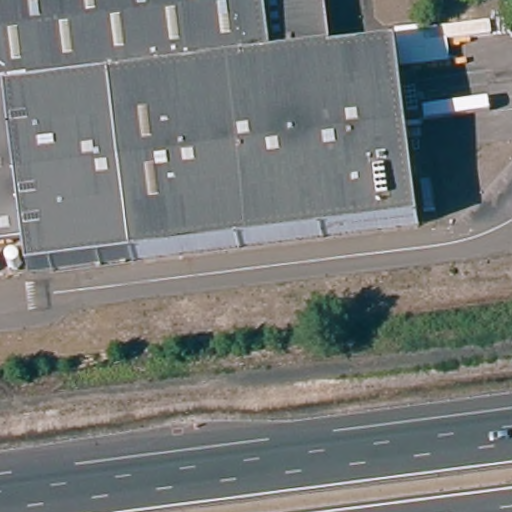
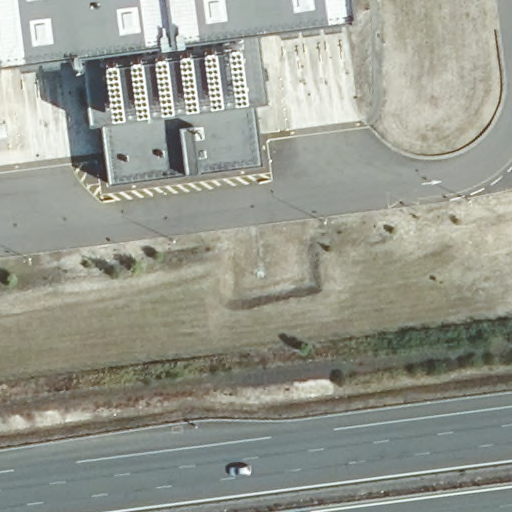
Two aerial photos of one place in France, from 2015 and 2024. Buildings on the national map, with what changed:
new [(253,20),(264,98),(254,100),(262,161),(112,181),(105,119),(89,120),(80,43),(0,54),(0,0),(348,0),(348,8),(253,20)]
demolished [(393,46),(415,223),(24,272),(21,243),(2,93),(0,93),(0,0),(323,0),(329,54),(393,46)]

